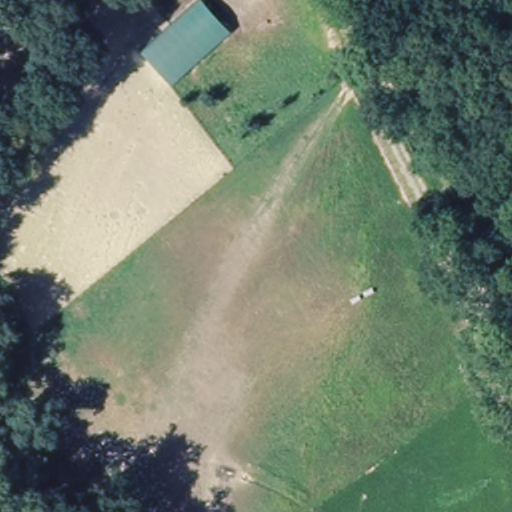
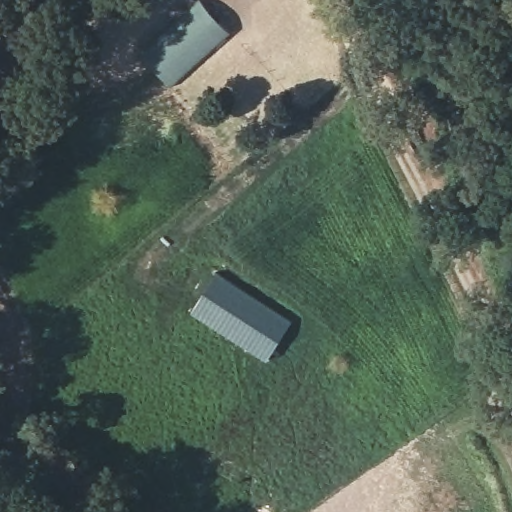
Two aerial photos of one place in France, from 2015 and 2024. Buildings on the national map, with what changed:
unchanged [(199,0),(232,36),(171,88),(139,53),(197,0),(199,0)]
new [(215,273),(291,321),(265,364),(187,314),(215,273)]

